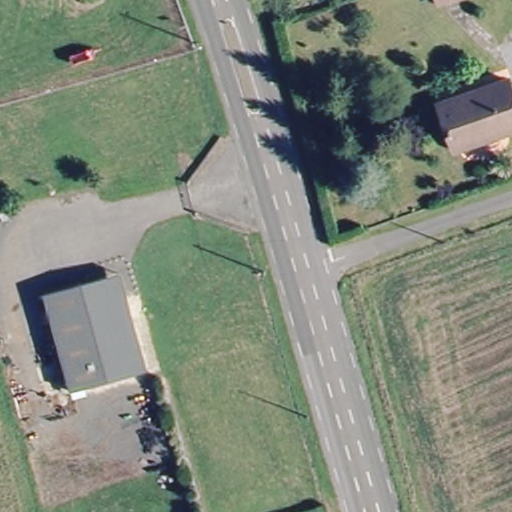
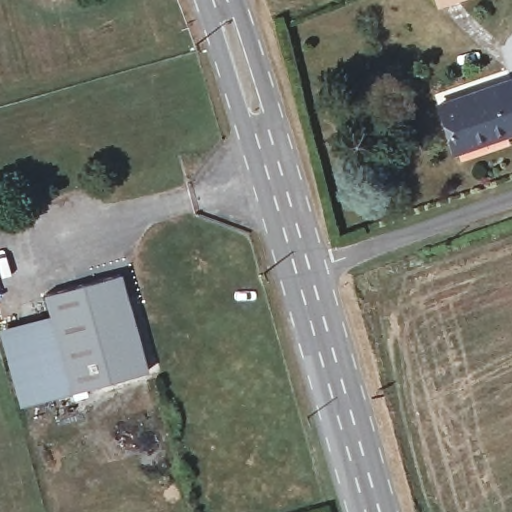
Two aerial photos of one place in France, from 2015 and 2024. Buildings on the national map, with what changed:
unchanged [(440,0),(465,0),(444,8),(440,0)]
unchanged [(441,101),(512,80),(512,134),(506,136),(458,151),(454,141),(441,101)]
unchanged [(120,276),(148,372),(75,393),(49,297),(120,276)]
new [(75,393),(19,407),(0,333),(0,329),(54,315),(75,393)]

